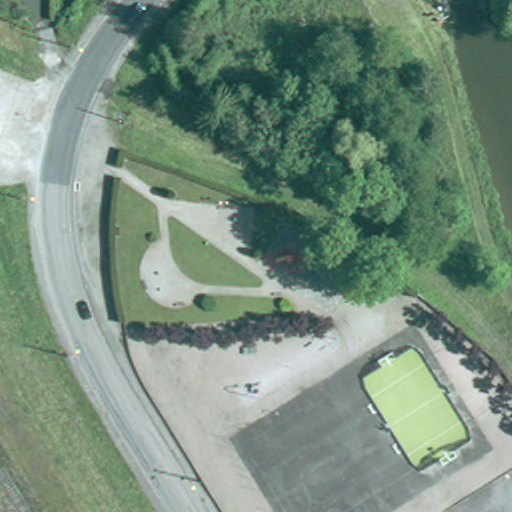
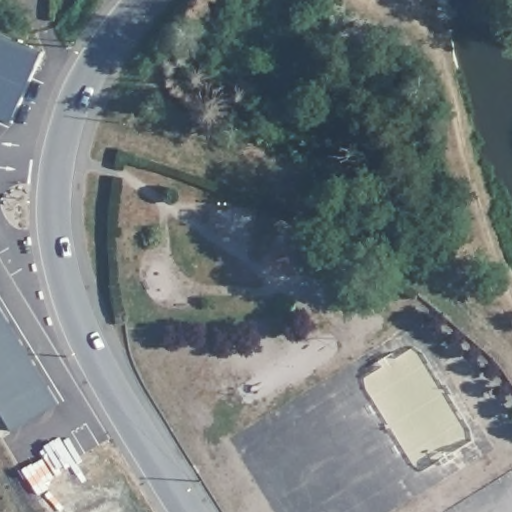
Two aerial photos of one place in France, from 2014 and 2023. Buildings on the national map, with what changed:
demolished [(315,20),(310,14),(317,10),(311,0),(347,0),(354,11),(328,27),(321,17),(315,20)]
demolished [(369,12),(385,2),(400,25),(383,35),(369,12)]
new [(12,123),(0,118),(0,34),(42,52),(12,123)]
demolished [(450,234),(447,237),(445,238),(442,239),(437,240),(435,239),(433,238),(429,235),(427,232),(427,231),(425,226),(427,221),(429,217),(432,214),(433,214),(437,212),(442,213),(443,214),(446,215),(450,218),(452,220),(452,221),(453,225),(452,230),(450,234)]
new [(0,405),(0,305),(60,403),(15,430),(0,405)]
demolished [(367,320),(375,315),(383,329),(375,335),(367,320)]

